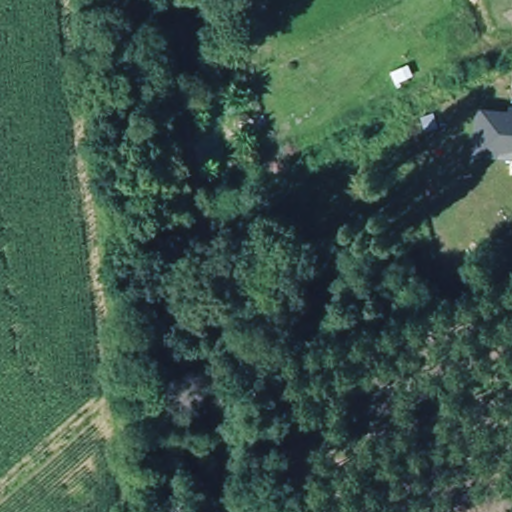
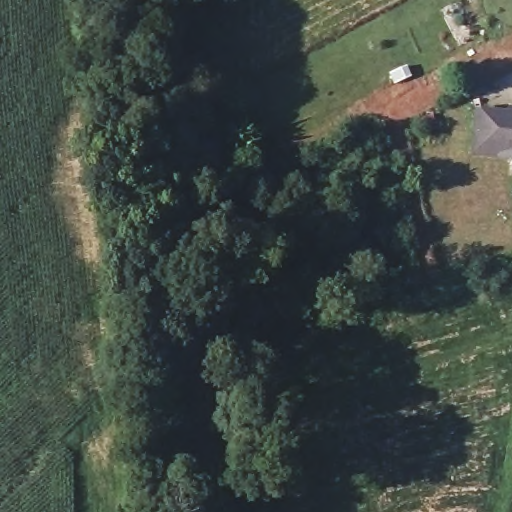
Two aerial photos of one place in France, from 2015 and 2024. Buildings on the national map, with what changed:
unchanged [(474,109),(505,111),(506,106),(512,107),(512,157),(469,153),(474,109)]

